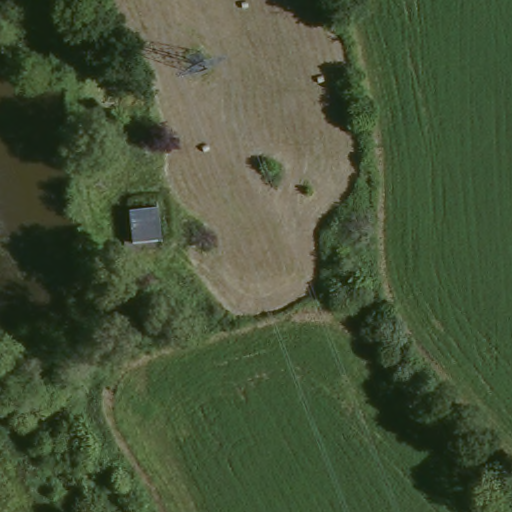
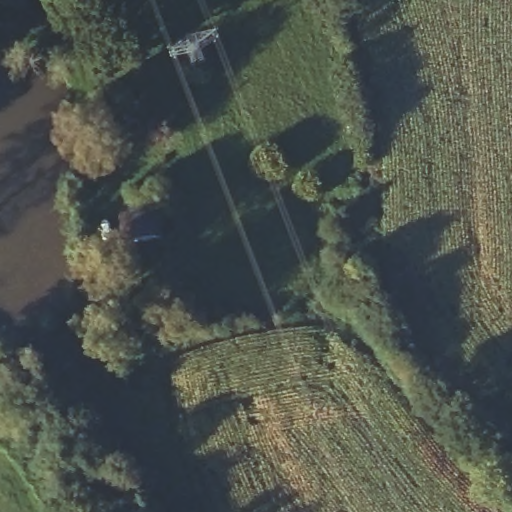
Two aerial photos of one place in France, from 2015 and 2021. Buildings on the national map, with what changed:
unchanged [(130,209),(158,206),(161,240),(132,242),(130,209)]

